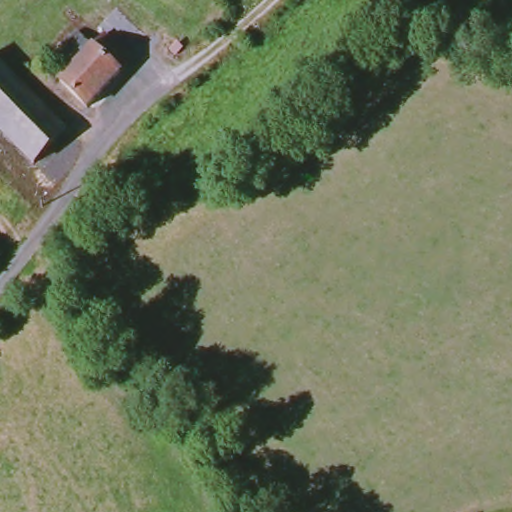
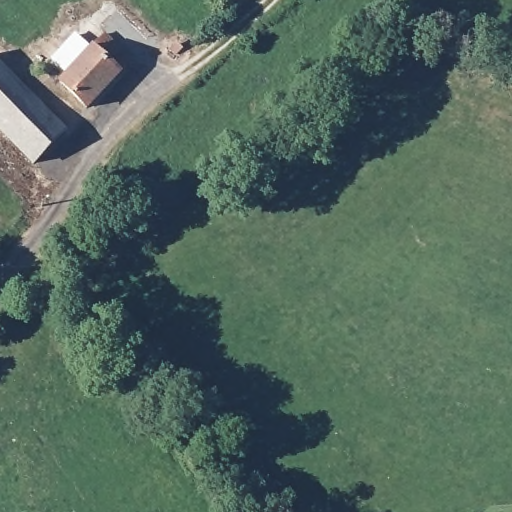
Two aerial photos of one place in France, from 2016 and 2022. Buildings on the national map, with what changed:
unchanged [(76,44),(91,57),(105,43),(131,67),(86,117),(45,75),(76,44)]
unchanged [(32,166),(0,132),(0,61),(66,135),(32,166)]
unchanged [(112,202),(101,197),(106,187),(117,192),(112,202)]

